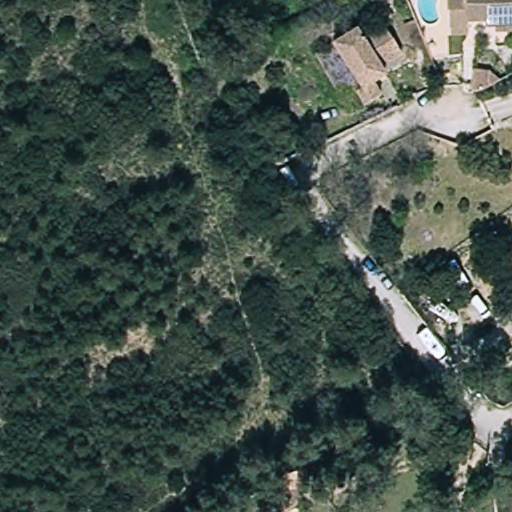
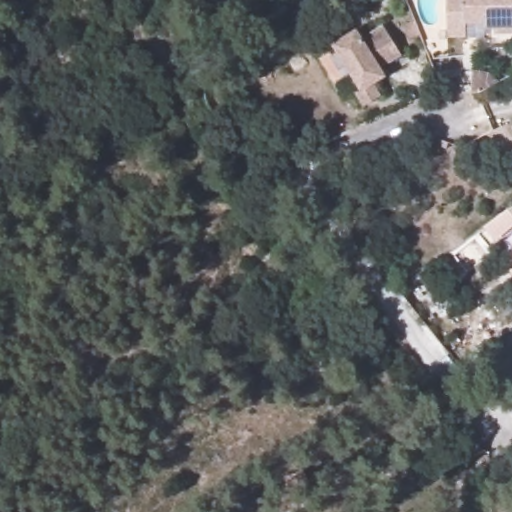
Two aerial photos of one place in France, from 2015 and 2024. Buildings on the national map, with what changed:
unchanged [(492,27),(492,21),(463,22),(463,35),(445,35),(444,0),(512,0),(512,26),(492,27)]
unchanged [(355,32),(361,41),(382,29),(399,58),(377,71),(382,79),(369,86),(377,99),(361,109),(352,95),(358,92),(331,46),(355,32)]

